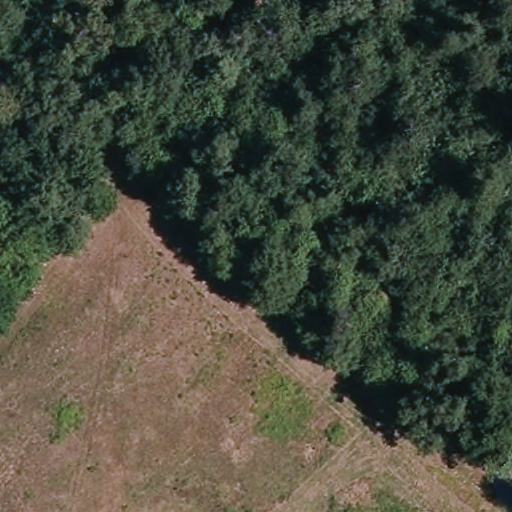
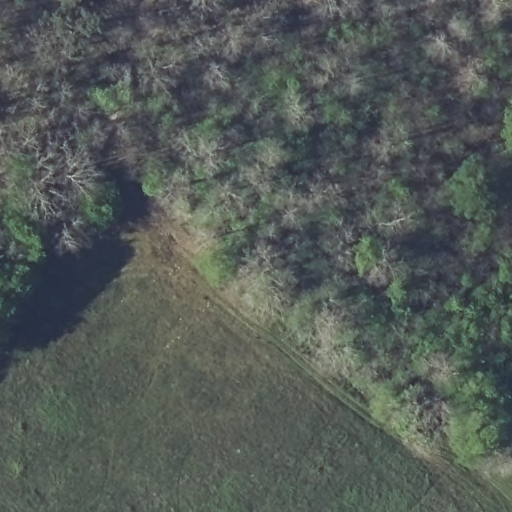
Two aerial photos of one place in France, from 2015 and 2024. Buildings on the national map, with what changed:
unchanged [(95,220),(81,204),(91,194),(106,211),(95,220)]

